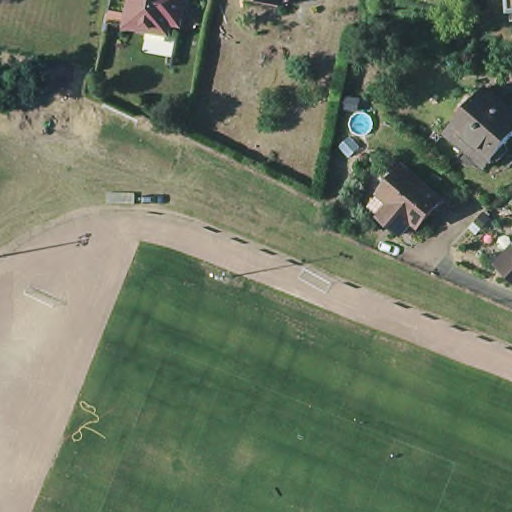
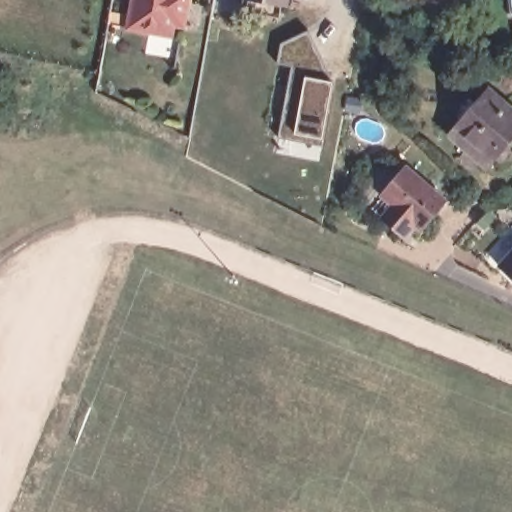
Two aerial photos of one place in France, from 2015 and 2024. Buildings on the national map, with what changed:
unchanged [(146,22),(124,18),(127,0),(181,0),(178,14),(169,12),(166,26),(164,38),(144,35),(146,22)]
unchanged [(289,2),(278,0),(289,0),(289,2)]
new [(333,82),(323,139),(321,146),(279,138),(291,65),(278,62),(281,44),(308,31),(333,82)]
unchanged [(499,159),(492,167),(453,133),(493,87),(512,103),(512,152),(506,159),(499,159)]
unchanged [(383,219),(394,206),(383,197),(407,170),(445,202),(422,230),(415,224),(404,237),(383,219)]
unchanged [(512,247),(512,284),(494,267),(512,247)]

